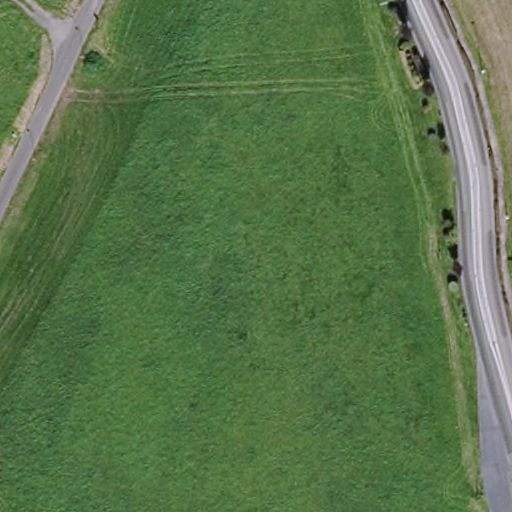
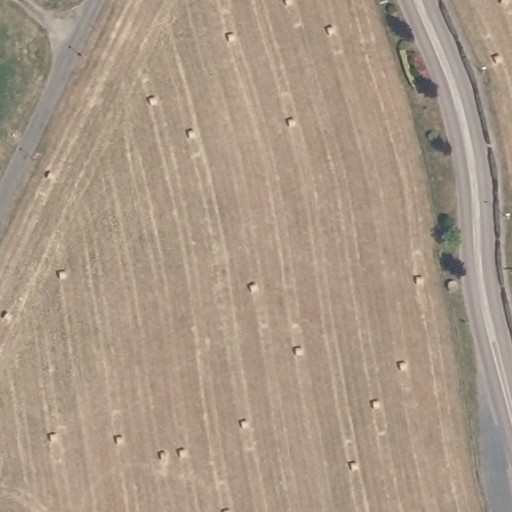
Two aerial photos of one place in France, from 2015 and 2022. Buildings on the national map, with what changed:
[]

